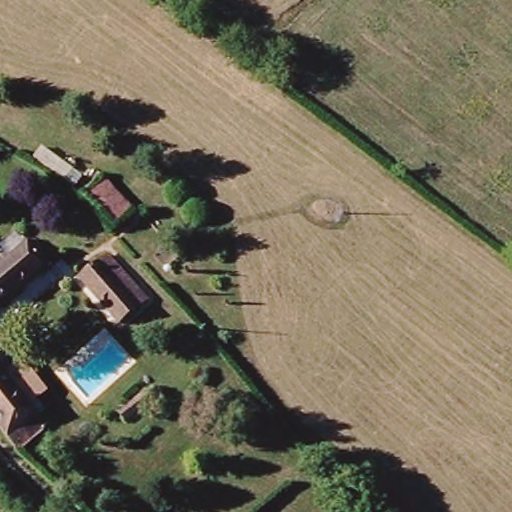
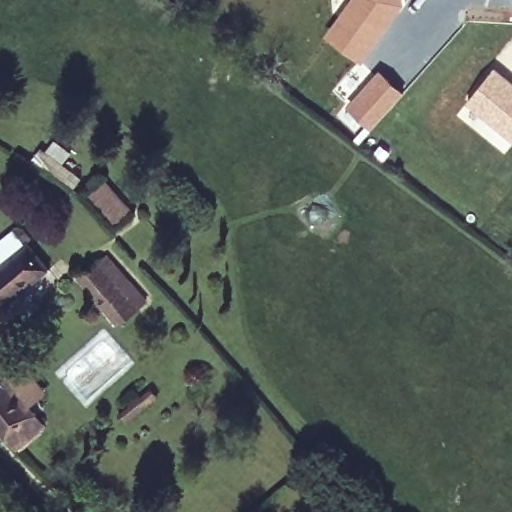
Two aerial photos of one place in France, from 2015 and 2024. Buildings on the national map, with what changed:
new [(348,0),(404,0),(405,3),(398,14),(362,61),(325,34),(348,0)]
new [(496,65),(512,77),(512,131),(470,97),(496,65)]
new [(384,67),(407,87),(377,121),(354,101),(384,67)]
unchanged [(0,269),(26,247),(46,272),(0,310),(0,269)]
unchanged [(81,283),(90,276),(80,262),(90,255),(100,267),(110,260),(145,302),(135,312),(116,326),(81,283)]
unchanged [(0,430),(0,369),(47,427),(17,452),(0,430)]

